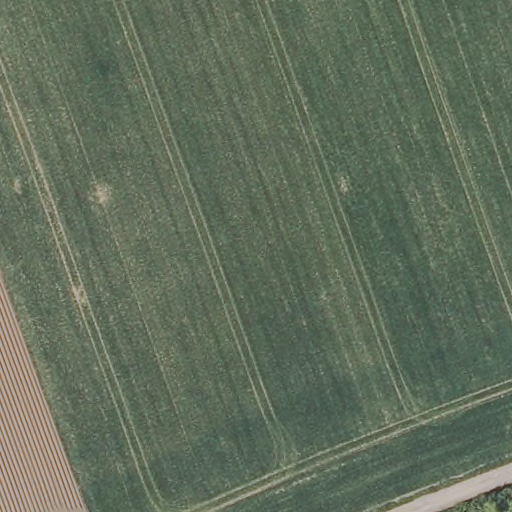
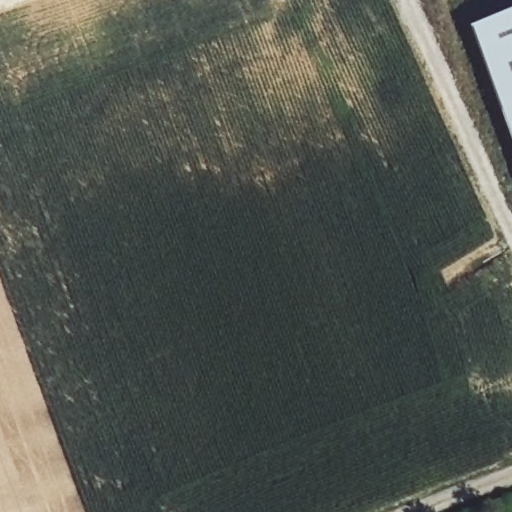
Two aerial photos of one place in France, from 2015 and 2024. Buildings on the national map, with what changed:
new [(512,9),(512,141),(471,22),(512,9)]

